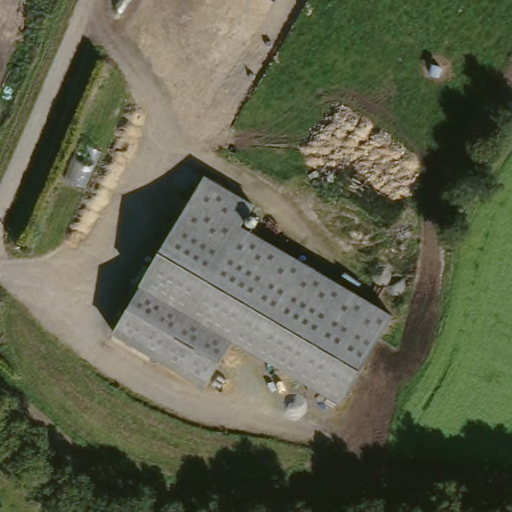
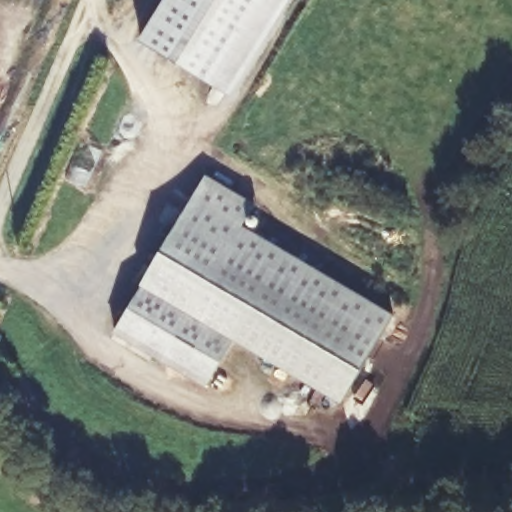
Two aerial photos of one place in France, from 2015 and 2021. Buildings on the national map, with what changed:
new [(155,0),(300,0),(239,102),(132,38),(155,0)]
unchanged [(213,177),(263,207),(259,216),(268,222),(262,234),(396,314),(346,403),(240,342),(212,386),(122,335),(213,177)]

